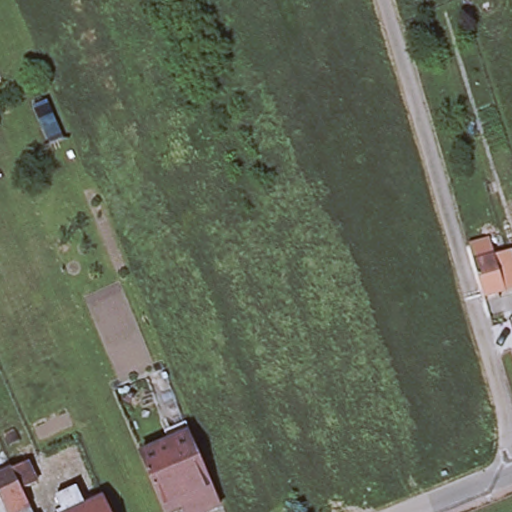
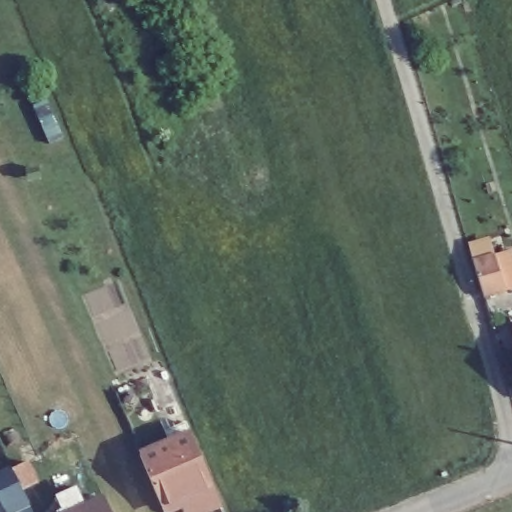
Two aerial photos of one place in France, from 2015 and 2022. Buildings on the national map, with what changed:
unchanged [(507,286),(486,292),(475,256),(471,240),(489,235),(495,250),(497,249),(507,286)]
unchanged [(190,431),(213,484),(220,500),(198,509),(191,491),(161,503),(140,452),(190,431)]
unchanged [(0,496),(0,471),(11,466),(26,459),(36,479),(21,486),(30,502),(34,512),(8,512),(0,496)]
unchanged [(114,512),(66,512),(60,499),(80,489),(89,508),(108,499),(114,512)]

